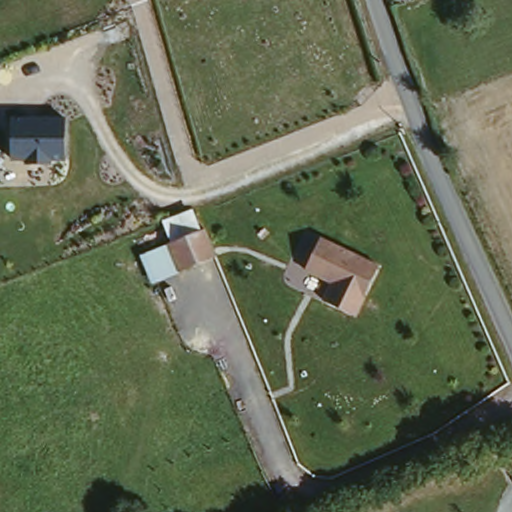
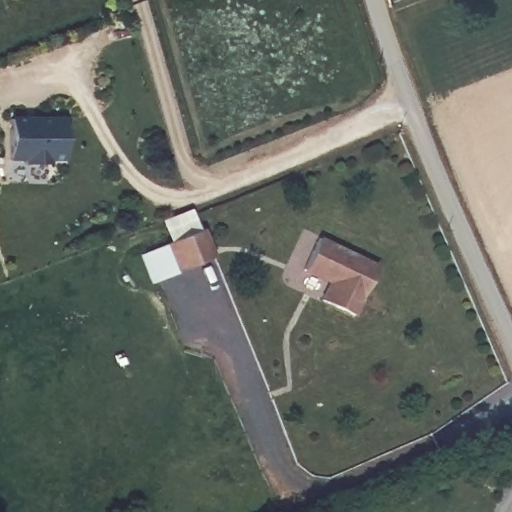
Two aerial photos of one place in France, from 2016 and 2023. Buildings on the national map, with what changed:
unchanged [(13,117),(69,118),(67,161),(52,161),(52,164),(26,164),(26,160),(12,159),(13,117)]
unchanged [(199,229),(167,242),(161,222),(190,208),(199,229)]
unchanged [(141,255),(167,242),(204,227),(215,255),(177,270),(152,282),(141,255)]
unchanged [(378,263),(355,312),(323,297),(332,280),(305,267),(320,235),(378,263)]

